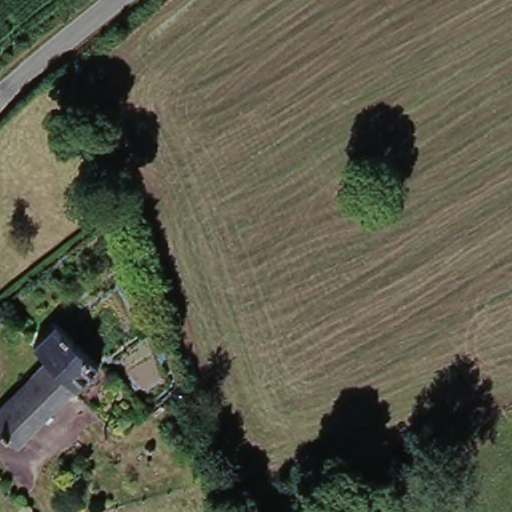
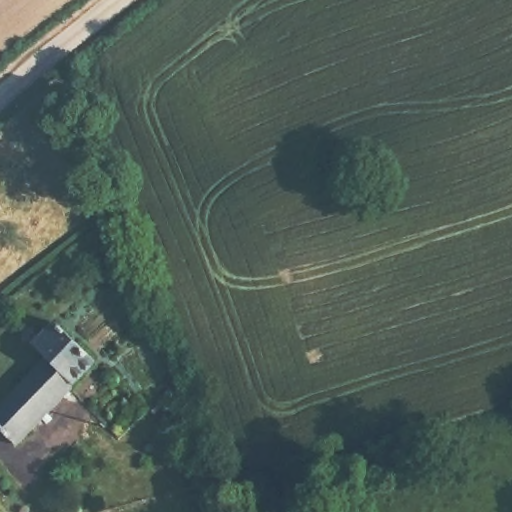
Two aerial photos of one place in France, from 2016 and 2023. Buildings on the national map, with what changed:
unchanged [(6,310),(0,314),(0,304),(6,310)]
unchanged [(1,324),(0,325),(0,323),(1,324)]
unchanged [(17,446),(0,429),(0,414),(48,361),(33,347),(57,324),(97,365),(17,446)]
unchanged [(190,390),(179,401),(172,389),(186,380),(190,390)]

